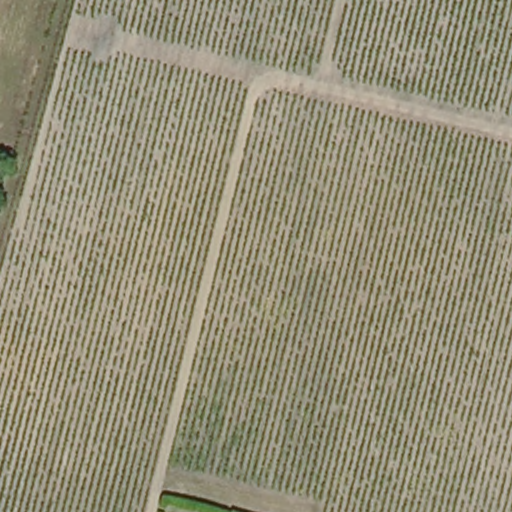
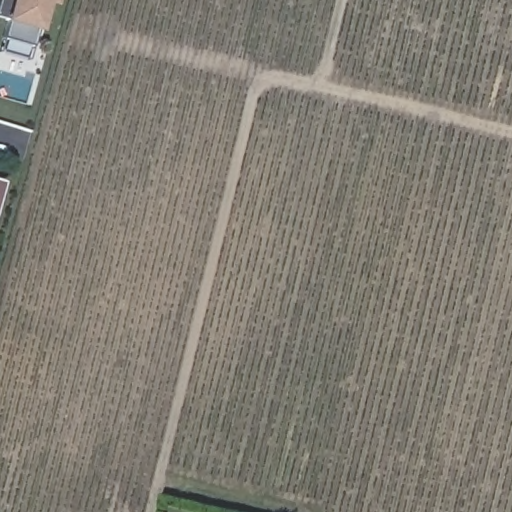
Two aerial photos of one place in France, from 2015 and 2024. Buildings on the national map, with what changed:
new [(54,7),(46,4),(35,46),(5,38),(9,24),(2,23),(9,0),(55,0),(54,7)]
new [(0,195),(0,183),(3,183),(0,195)]

